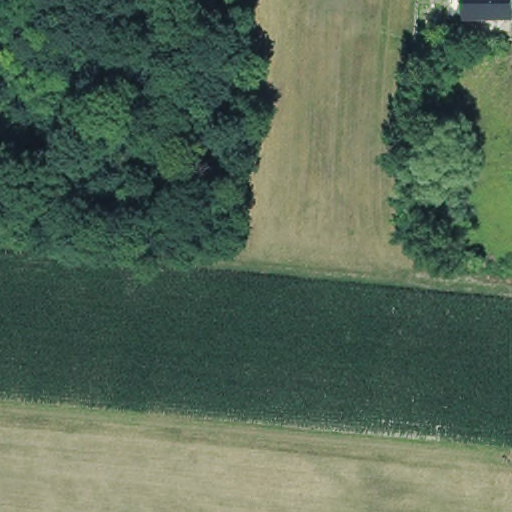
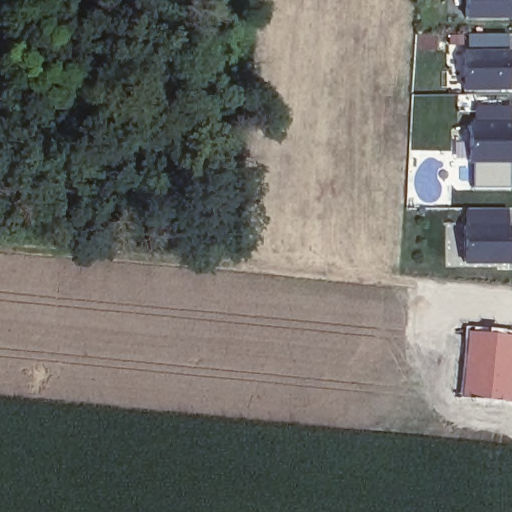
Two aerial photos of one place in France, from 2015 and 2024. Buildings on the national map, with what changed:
unchanged [(465,17),(465,0),(512,0),(512,17),(465,17)]
new [(463,91),(462,51),(508,51),(509,91),(463,91)]
new [(469,125),(512,125),(512,165),(470,165),(469,125)]
new [(507,209),(508,266),(465,266),(464,209),(507,209)]
new [(459,398),(466,334),(512,337),(512,405),(459,398)]

